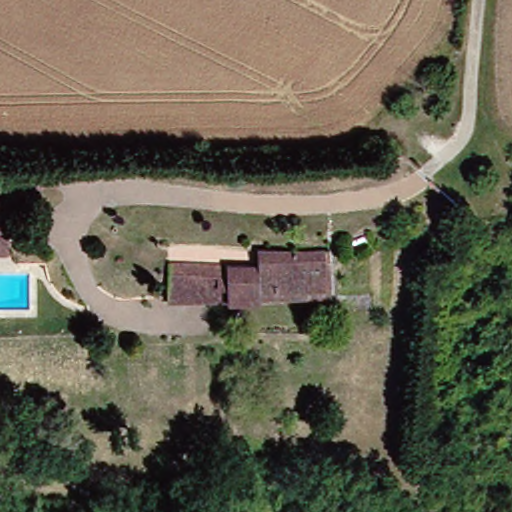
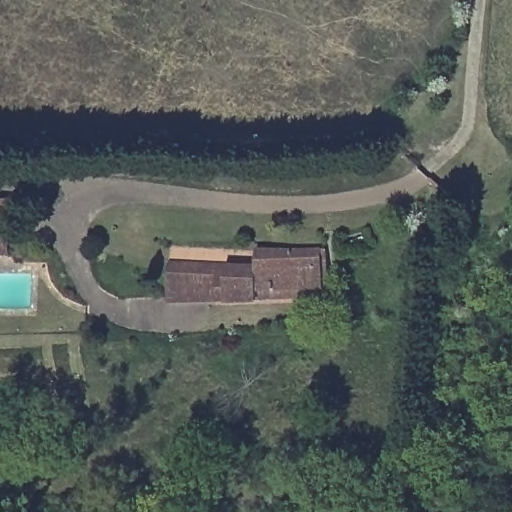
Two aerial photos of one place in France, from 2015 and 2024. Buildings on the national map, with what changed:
unchanged [(10,198),(12,253),(0,253),(0,198),(10,198)]
unchanged [(254,260),(254,249),(330,248),(328,296),(225,294),(225,259),(254,260)]
unchanged [(225,294),(225,298),(220,297),(165,295),(166,254),(225,259),(225,294)]

